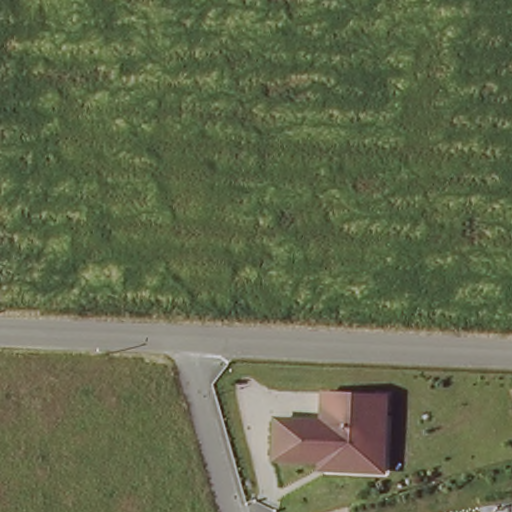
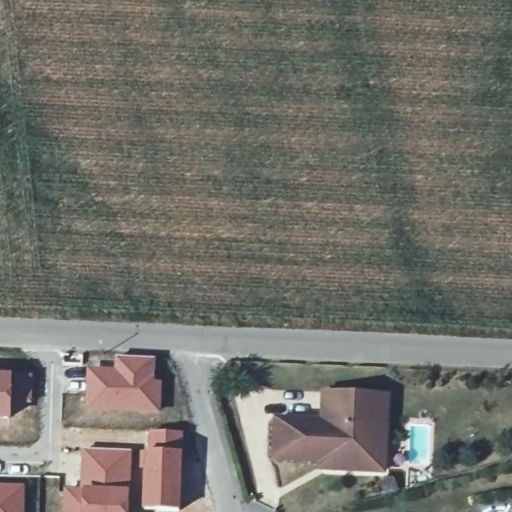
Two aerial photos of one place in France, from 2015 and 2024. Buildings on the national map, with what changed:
new [(86,366),(113,368),(114,356),(156,358),(156,380),(162,380),(160,414),(84,411),(86,366)]
new [(13,374),(12,422),(0,422),(0,374),(13,374)]
unchanged [(393,477),(321,476),(321,465),(277,465),(278,417),(325,419),(325,393),(398,396),(393,477)]
new [(142,510),(141,451),(147,451),(148,430),(184,431),(183,452),(181,512),(142,510)]
new [(62,486),(80,487),(81,449),(133,450),(129,512),(61,512),(62,486)]
new [(25,484),(24,512),(0,512),(0,483),(25,484)]

